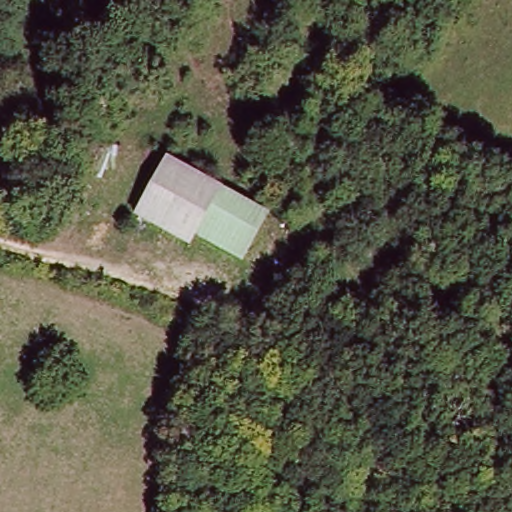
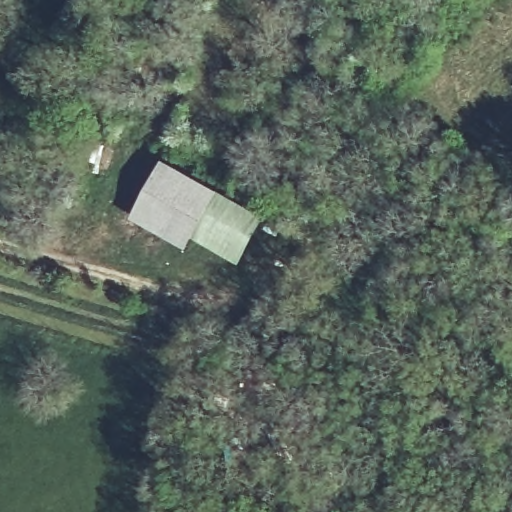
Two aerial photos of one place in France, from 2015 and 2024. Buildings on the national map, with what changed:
unchanged [(246,258),(199,235),(193,245),(140,216),(169,161),(269,215),(249,250),(246,258)]

